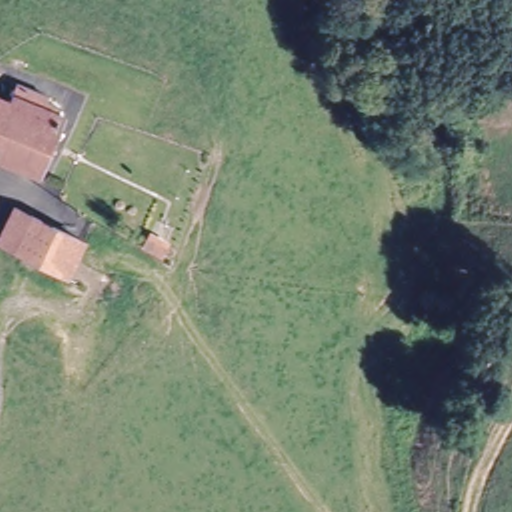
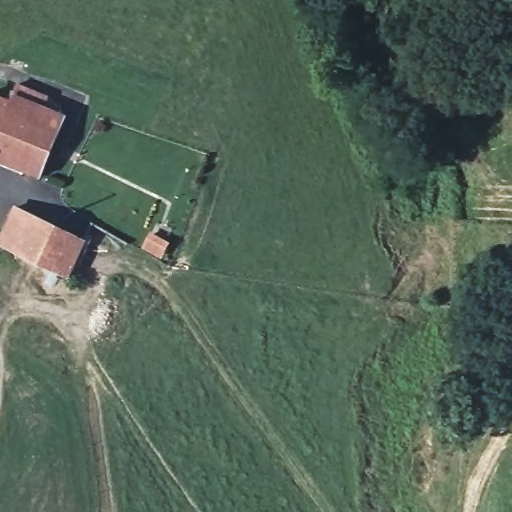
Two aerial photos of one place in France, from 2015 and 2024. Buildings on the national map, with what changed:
unchanged [(0,168),(0,106),(4,107),(11,90),(43,102),(40,107),(55,114),(54,119),(56,120),(33,180),(0,168)]
unchanged [(66,278),(0,245),(0,238),(13,208),(81,242),(66,278)]
unchanged [(144,248),(150,235),(165,244),(159,256),(144,248)]

